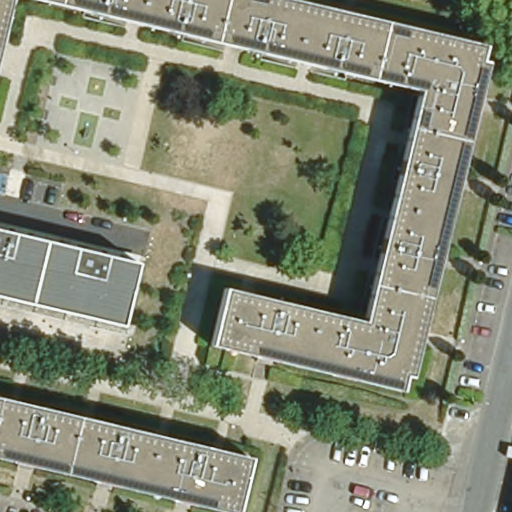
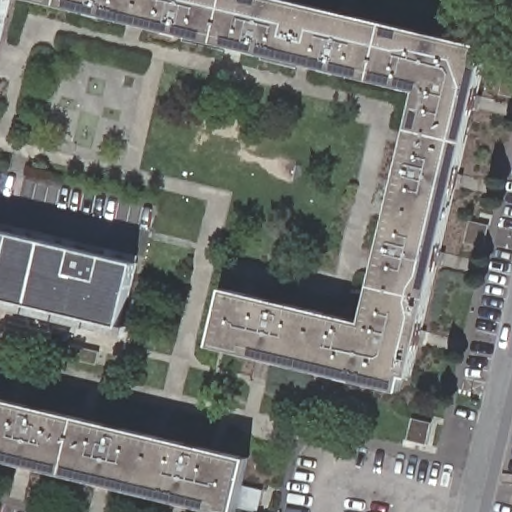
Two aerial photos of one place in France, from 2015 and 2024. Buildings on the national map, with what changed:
unchanged [(0,62),(0,0),(15,0),(0,62)]
unchanged [(482,59),(408,374),(404,394),(212,348),(225,289),(364,323),(419,90),(36,0),(296,0),(486,44),(482,59)]
unchanged [(488,60),(414,376),(408,374),(482,59),(488,60)]
unchanged [(119,333),(0,306),(0,230),(137,262),(119,333)]
unchanged [(237,512),(204,512),(0,464),(0,403),(250,458),(237,512)]

